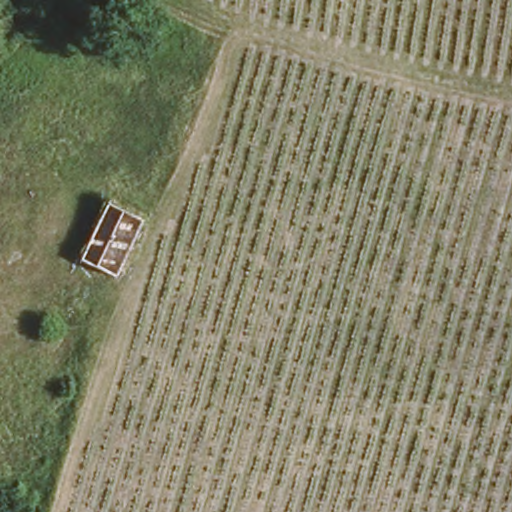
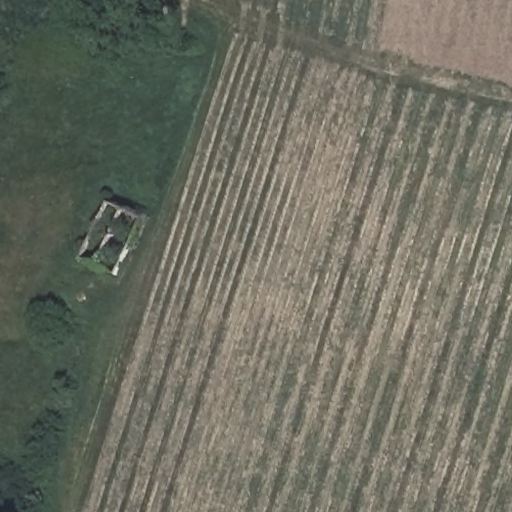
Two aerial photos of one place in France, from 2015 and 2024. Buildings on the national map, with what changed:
unchanged [(76,256),(106,197),(144,215),(113,276),(76,256)]

